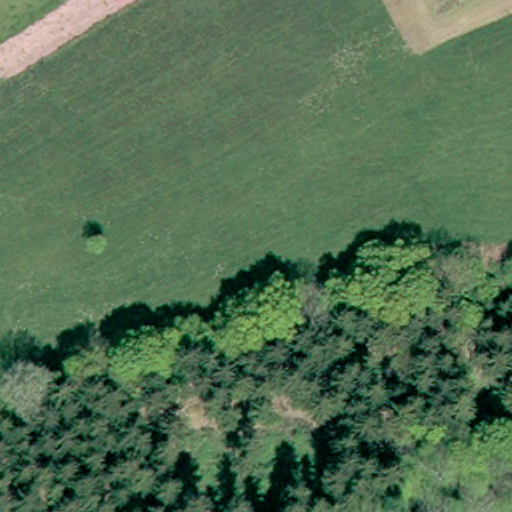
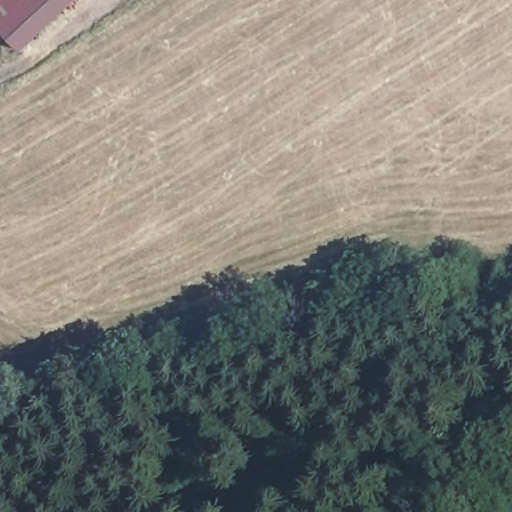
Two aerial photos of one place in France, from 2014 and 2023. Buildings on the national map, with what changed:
new [(22,50),(0,27),(0,0),(76,0),(22,50)]

